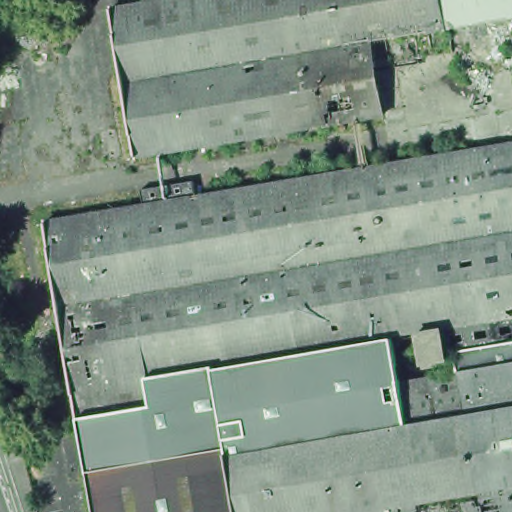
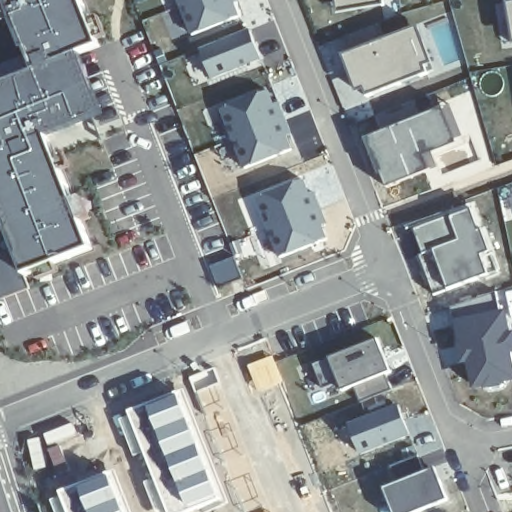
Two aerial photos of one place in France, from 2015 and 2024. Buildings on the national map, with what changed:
new [(67,51),(92,114),(35,135),(77,245),(13,274),(20,290),(0,298),(0,255),(3,254),(0,244),(0,81),(25,71),(15,47),(12,49),(0,19),(0,0),(69,0),(86,44),(67,51)]
demolished [(134,153),(112,5),(142,0),(440,0),(444,24),(370,36),(380,111),(134,153)]
new [(240,0),(235,3),(241,16),(195,34),(182,0),(240,0)]
new [(332,9),(331,0),(379,0),(380,3),(332,9)]
demolished [(440,0),(512,0),(512,14),(444,24),(440,0)]
new [(512,42),(507,43),(502,2),(512,0),(512,42)]
new [(411,26),(425,63),(418,65),(421,73),(361,95),(357,86),(350,90),(337,54),(411,26)]
new [(203,49),(252,30),(264,59),(214,79),(203,49)]
demolished [(0,115),(0,69),(5,114),(0,115)]
new [(270,92),(275,102),(278,100),(292,134),(288,136),(293,151),(246,169),(224,110),(270,92)]
new [(443,107),(458,144),(428,158),(432,168),(431,169),(432,170),(387,188),(363,139),(443,107)]
demolished [(512,129),(512,137),(511,129),(512,129)]
demolished [(372,397),(302,409),(223,422),(227,444),(85,467),(81,439),(182,422),(202,392),(166,399),(155,416),(80,431),(78,414),(45,218),(145,202),(141,184),(194,177),(196,193),(512,141),(512,359),(370,384),(372,397)]
new [(337,242),(275,267),(250,198),(309,174),(337,242)]
new [(478,231),(487,228),(492,252),(483,255),(490,273),(438,295),(418,229),(475,209),(478,231)]
new [(235,257),(245,280),(220,289),(211,267),(235,257)]
new [(465,362),(462,347),(460,348),(451,308),(497,293),(503,314),(505,314),(509,335),(511,335),(512,338),(512,353),(512,376),(511,377),(512,379),(509,379),(503,387),(490,389),(485,384),(478,386),(477,384),(473,385),(468,362),(465,362)]
new [(341,399),(337,391),(323,397),(310,360),(380,335),(397,377),(341,399)]
demolished [(227,444),(223,422),(302,409),(372,397),(370,384),(512,359),(512,512),(237,512),(227,444)]
demolished [(182,422),(81,439),(80,431),(155,416),(166,399),(202,392),(182,422)]
new [(185,393),(223,492),(175,512),(155,512),(120,421),(185,393)]
new [(398,406),(410,434),(361,454),(350,424),(398,406)]
demolished [(18,416),(32,414),(33,423),(35,434),(22,436),(18,416)]
demolished [(85,467),(227,444),(237,512),(92,512),(85,467)]
new [(445,502),(421,512),(394,512),(383,487),(394,483),(386,467),(418,456),(425,471),(435,467),(445,502)]
new [(100,474),(116,512),(54,512),(49,498),(100,474)]

